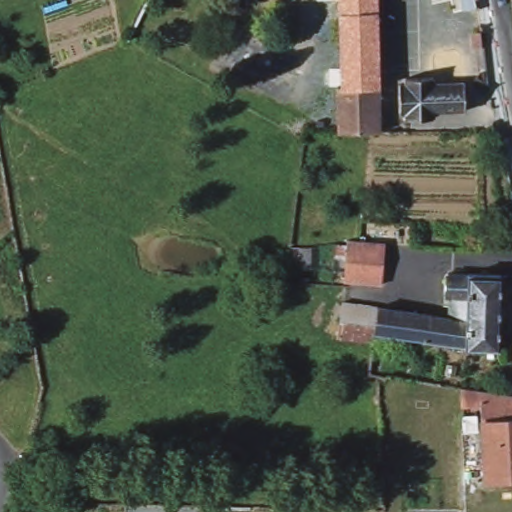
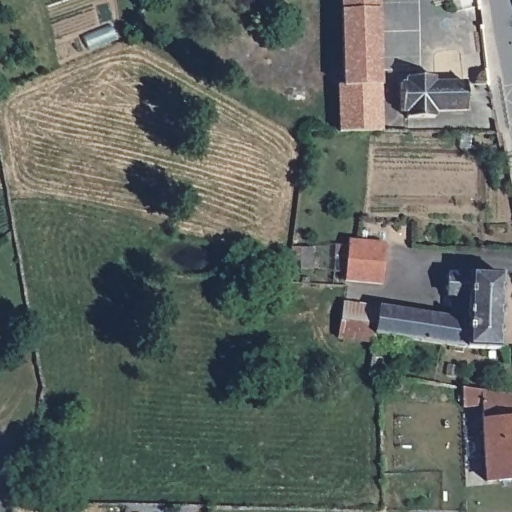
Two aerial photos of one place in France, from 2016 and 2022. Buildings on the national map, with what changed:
unchanged [(343,0),(381,0),(383,130),(364,130),(341,130),(340,91),(331,92),(331,77),(344,76),(343,0)]
unchanged [(474,48),(472,30),(480,30),(483,46),(474,48)]
unchanged [(398,81),(404,81),(404,76),(433,76),(433,82),(464,82),(465,110),(433,110),(433,116),(404,116),(404,110),(398,110),(398,81)]
unchanged [(385,288),(350,284),(352,258),(339,257),(339,244),(351,244),(359,245),(390,246),(385,288)]
unchanged [(289,246),(309,245),(310,268),(298,268),(298,260),(288,258),(288,248),(288,246),(289,246)]
unchanged [(449,317),(451,296),(447,296),(448,275),(469,275),(469,273),(501,273),(500,348),(463,347),(372,335),(372,341),(365,341),(337,338),(341,317),(341,300),(449,317)]
unchanged [(512,399),(512,481),(489,482),(484,410),(464,410),(463,392),(512,399)]

